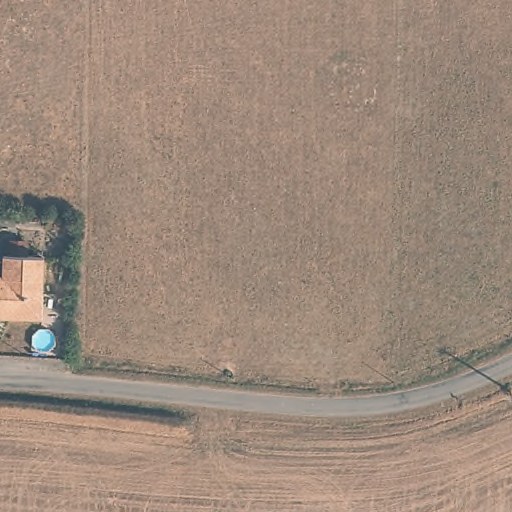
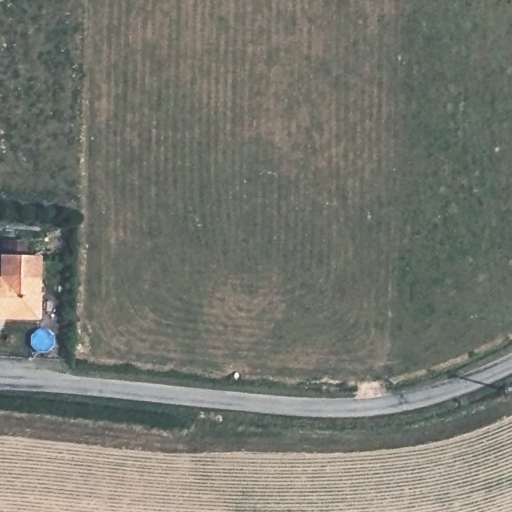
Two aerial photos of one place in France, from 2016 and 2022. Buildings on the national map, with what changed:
unchanged [(4,258),(44,257),(45,322),(9,322),(0,322),(0,274),(5,274),(4,258)]

